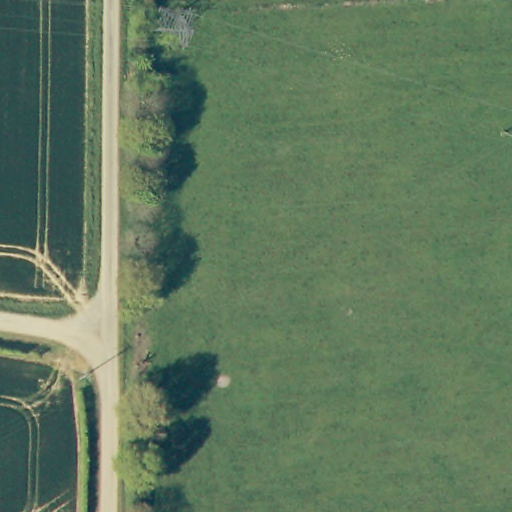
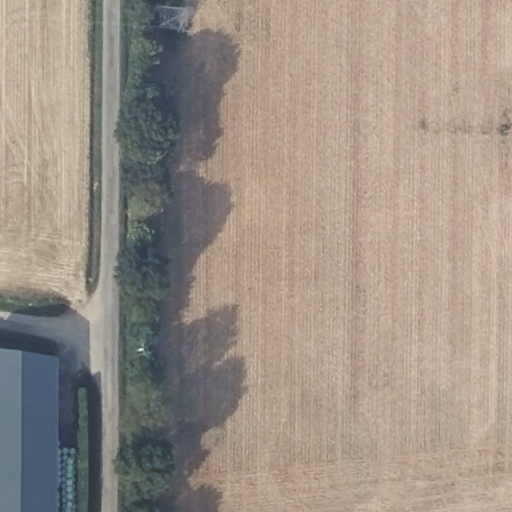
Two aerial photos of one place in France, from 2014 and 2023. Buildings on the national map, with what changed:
new [(0,396),(52,397),(52,512),(0,512),(0,396)]

